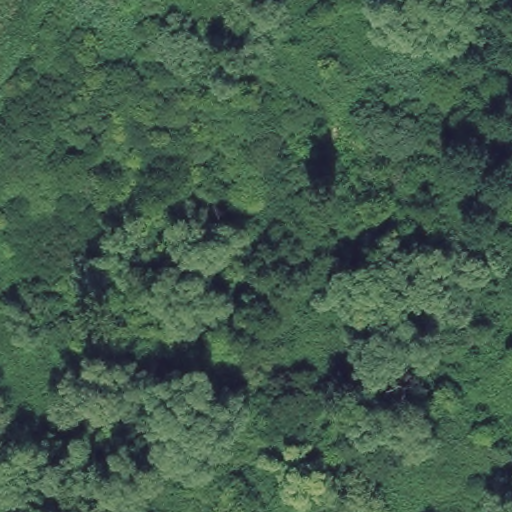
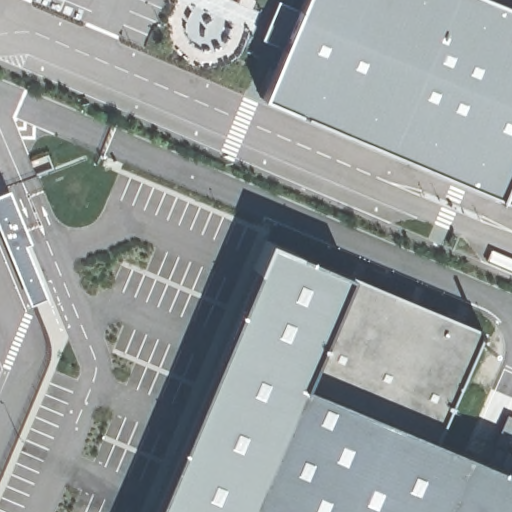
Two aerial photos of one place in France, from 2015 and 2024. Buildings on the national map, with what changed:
new [(261,40),(278,0),(298,9),(302,0),(512,0),(512,203),(261,98),(282,48),(261,40)]
new [(8,189),(30,242),(25,245),(46,296),(28,304),(0,234),(0,193),(8,189)]
new [(483,330),(435,440),(502,468),(511,447),(512,448),(512,512),(150,512),(265,239),(483,330)]

